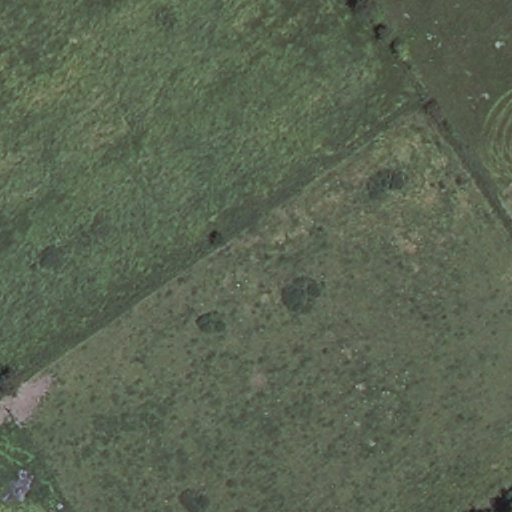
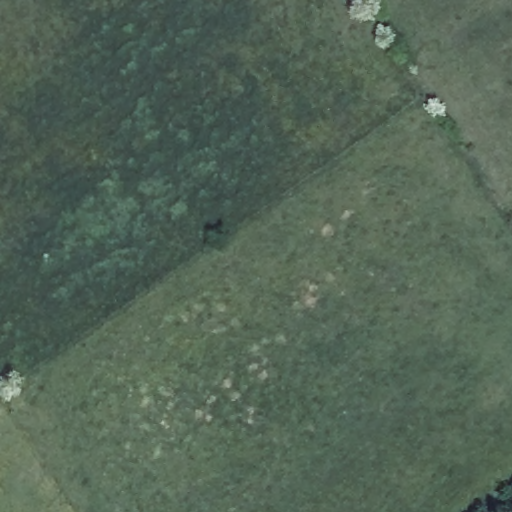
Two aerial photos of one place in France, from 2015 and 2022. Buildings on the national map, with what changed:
[]

